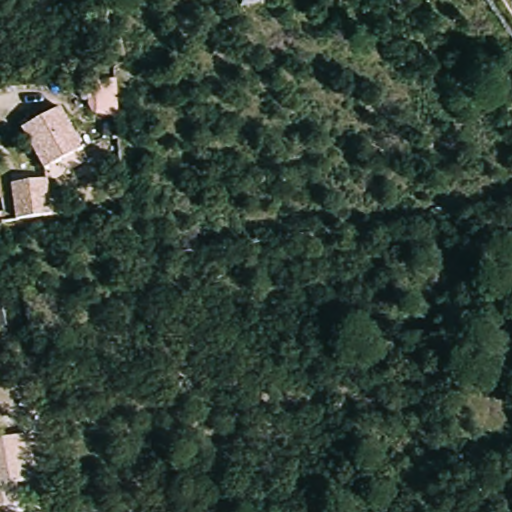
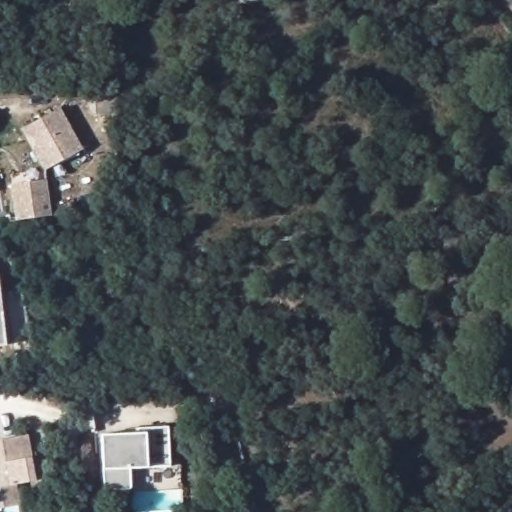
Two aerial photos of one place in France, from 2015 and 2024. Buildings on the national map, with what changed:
unchanged [(256,0),(257,4),(227,6),(227,0),(256,0)]
unchanged [(118,119),(90,115),(88,104),(85,103),(85,80),(117,79),(118,119)]
unchanged [(43,171),(19,128),(61,106),(83,148),(43,171)]
unchanged [(50,217),(17,222),(13,184),(47,181),(50,217)]
new [(0,346),(0,312),(4,346),(0,346)]
new [(168,467),(145,467),(127,468),(128,489),(103,490),(103,469),(101,436),(144,433),(143,430),(167,428),(168,467)]
unchanged [(41,481),(15,486),(19,506),(0,509),(0,441),(30,435),(41,481)]

